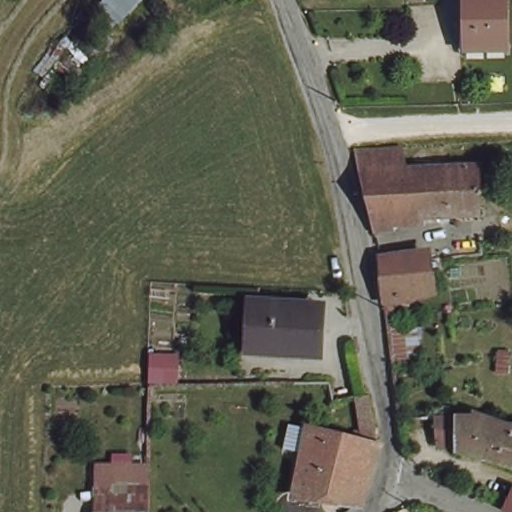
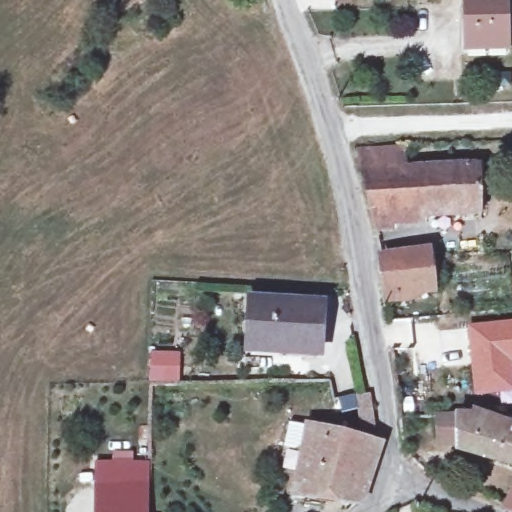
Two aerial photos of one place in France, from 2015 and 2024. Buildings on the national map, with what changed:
demolished [(116,24),(98,5),(103,0),(138,0),(116,24)]
unchanged [(512,38),(512,56),(465,56),(461,0),(509,0),(512,38)]
unchanged [(400,149),(401,170),(477,168),(478,215),(391,218),(392,230),(374,232),(356,171),(354,150),(400,149)]
unchanged [(433,259),(435,286),(412,288),(412,300),(386,301),(382,261),(433,259)]
unchanged [(318,355),(249,350),(251,305),(319,308),(318,355)]
new [(473,395),(465,323),(512,319),(512,392),(473,395)]
unchanged [(482,460),(456,456),(453,445),(434,446),(434,417),(442,416),(465,414),(472,409),(490,422),(506,424),(512,425),(512,456),(507,469),(482,460)]
unchanged [(293,497),(296,462),(308,426),(368,444),(376,447),(367,475),(353,504),(293,497)]
unchanged [(150,483),(150,512),(98,512),(98,484),(150,483)]
unchanged [(512,492),(512,511),(505,507),(512,492)]

